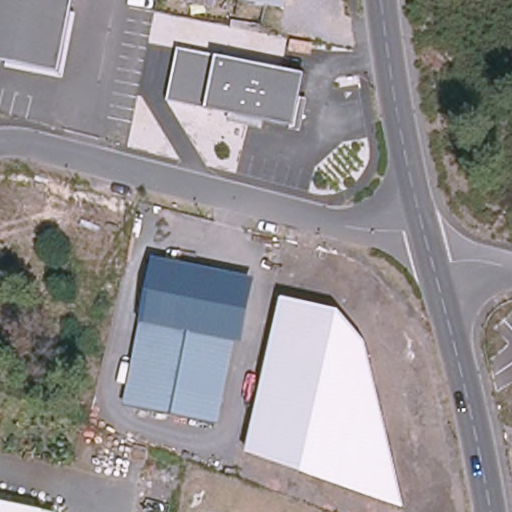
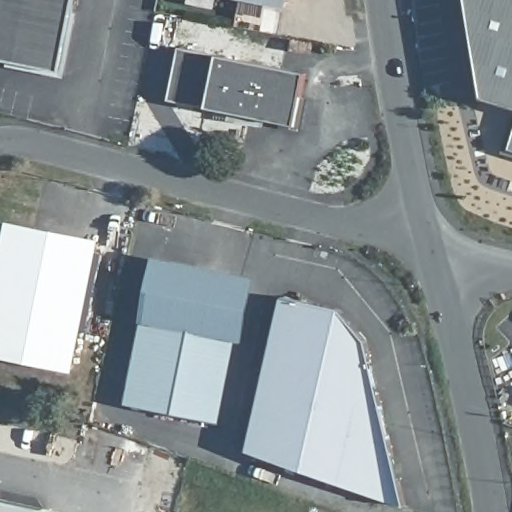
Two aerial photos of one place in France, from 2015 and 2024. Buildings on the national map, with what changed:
unchanged [(60,71),(0,59),(0,0),(74,0),(60,71)]
unchanged [(285,7),(249,0),(286,0),(285,7)]
new [(481,101),(464,0),(512,0),(512,111),(481,101)]
unchanged [(305,73),(295,126),(168,101),(179,48),(305,73)]
new [(507,152),(512,135),(512,154),(507,152)]
new [(0,357),(0,263),(9,221),(99,240),(72,372),(0,357)]
unchanged [(246,342),(235,340),(220,422),(125,405),(141,322),(155,257),(258,276),(246,342)]
unchanged [(245,453),(280,297),(339,310),(365,343),(403,507),(245,453)]
unchanged [(45,510),(45,512),(0,512),(0,500),(19,504),(45,510)]
unchanged [(45,512),(45,510),(55,512),(45,512)]

